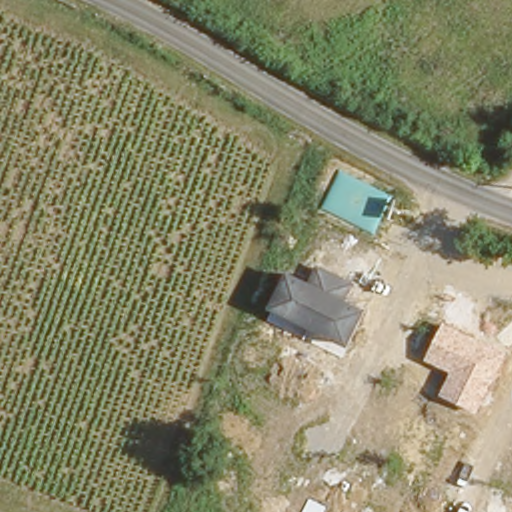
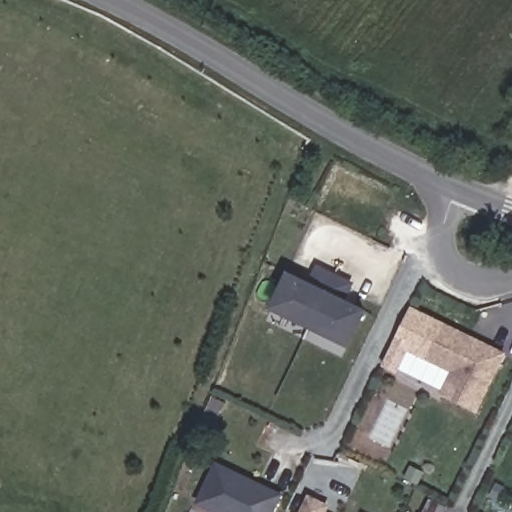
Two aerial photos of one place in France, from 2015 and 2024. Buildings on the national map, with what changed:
unchanged [(349,347),(271,309),(290,271),(314,284),(321,268),(357,285),(349,301),(369,310),(349,347)]
new [(426,360),(407,350),(397,372),(382,365),(411,305),(446,323),(426,360)]
unchanged [(477,416),(438,395),(450,373),(426,361),(447,321),(507,352),(477,416)]
new [(196,503),(216,461),(283,494),(274,512),(214,512),(196,503)]
unchanged [(310,499),(327,507),(325,512),(304,512),(310,499)]

